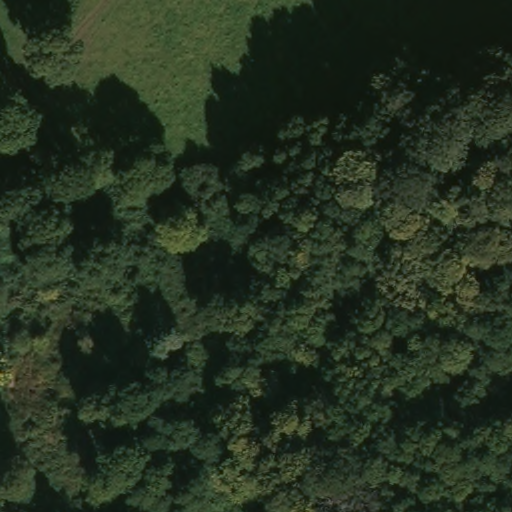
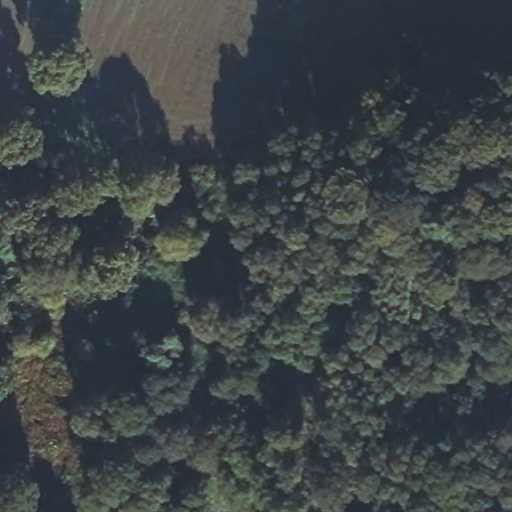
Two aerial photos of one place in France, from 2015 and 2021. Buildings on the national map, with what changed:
[]

